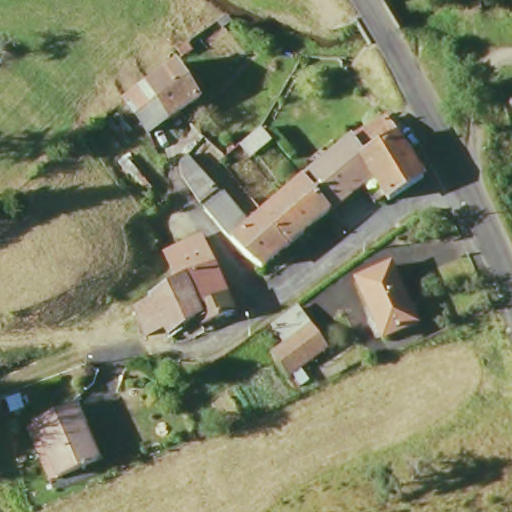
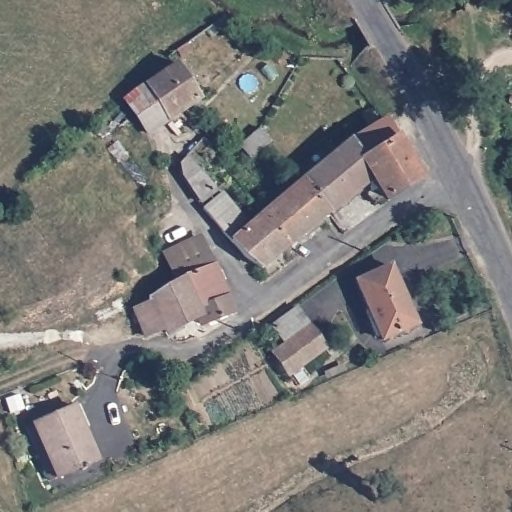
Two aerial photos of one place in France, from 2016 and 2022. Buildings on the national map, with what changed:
unchanged [(175,66),(200,101),(178,116),(146,136),(123,102),(175,66)]
unchanged [(384,119),(419,179),(385,201),(368,177),(350,144),(384,119)]
unchanged [(269,142),(249,159),(240,146),(258,130),(269,142)]
unchanged [(368,177),(327,212),(304,181),(328,160),(350,144),(368,177)]
unchanged [(259,219),(261,217),(304,181),(327,212),(283,249),(259,219)]
unchanged [(258,270),(243,257),(203,210),(220,196),(240,219),(241,219),(249,227),(259,219),(283,249),(258,270)]
unchanged [(215,267),(176,281),(166,255),(204,242),(215,267)]
unchanged [(123,304),(148,292),(151,297),(176,281),(215,267),(237,312),(206,323),(202,316),(168,335),(165,330),(148,340),(123,304)]
unchanged [(378,344),(352,286),(387,270),(413,329),(378,344)]
unchanged [(270,353),(282,343),(269,327),(295,308),(323,346),(287,375),(270,353)]
unchanged [(55,481),(32,427),(70,409),(93,463),(55,481)]

